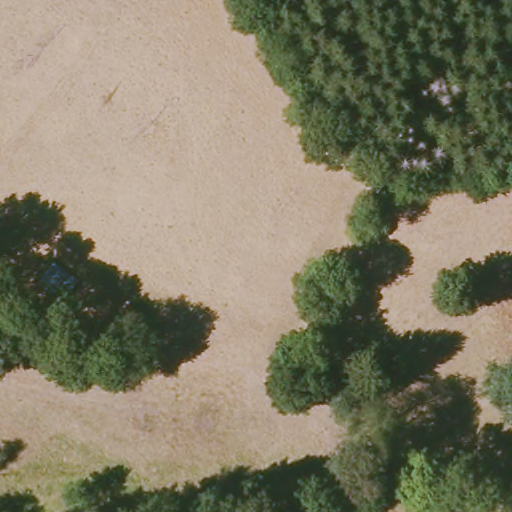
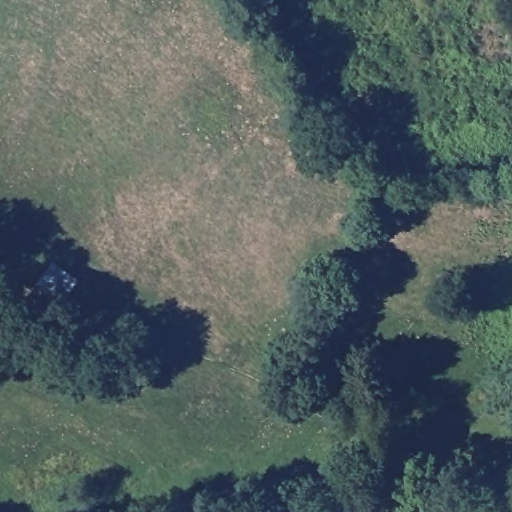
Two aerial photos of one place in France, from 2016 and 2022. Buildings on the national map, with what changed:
unchanged [(68,301),(58,316),(24,296),(36,280),(68,301)]

